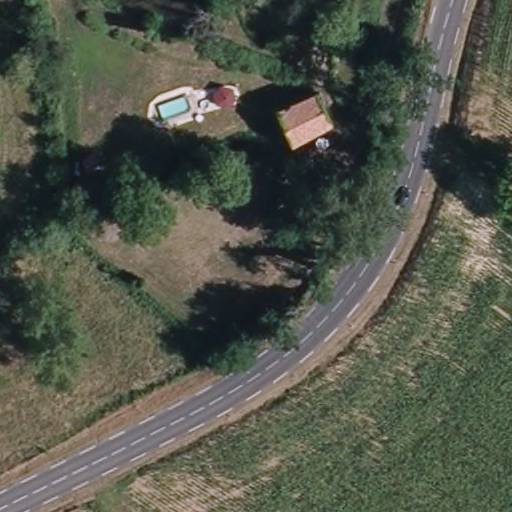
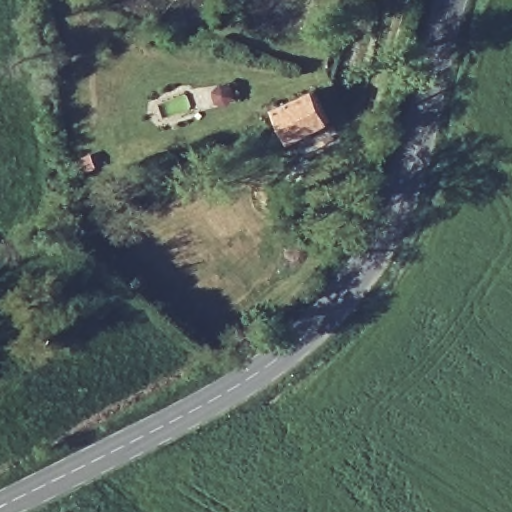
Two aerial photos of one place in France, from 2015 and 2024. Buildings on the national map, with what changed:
unchanged [(269,110),(311,93),(325,124),(284,144),(269,110)]

